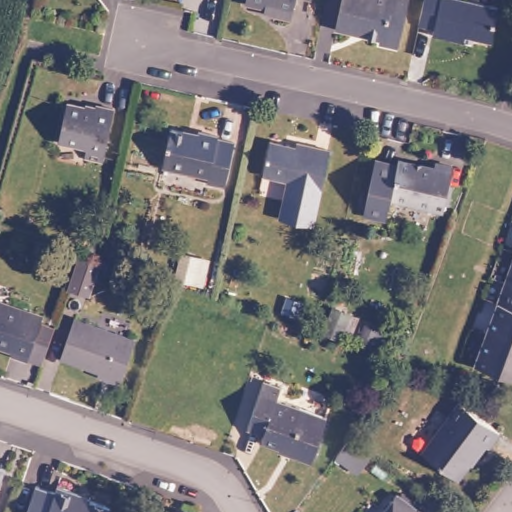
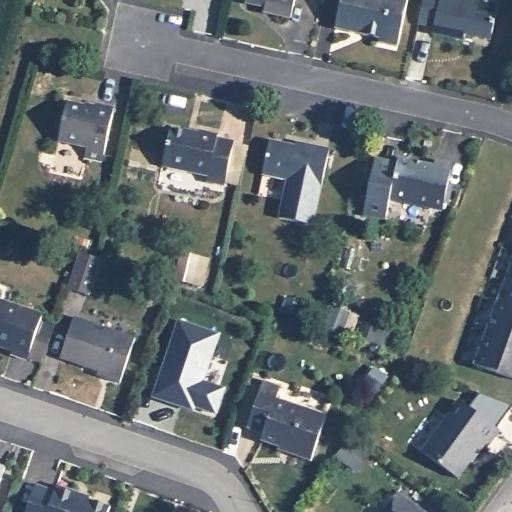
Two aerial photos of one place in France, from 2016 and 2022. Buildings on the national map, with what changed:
unchanged [(250,7),(237,4),(237,0),(283,0),(278,19),(264,17),(249,14),(250,7)]
unchanged [(396,47),(378,44),(379,40),(362,37),(364,31),(354,29),(353,34),(334,30),(341,0),(405,0),(396,47)]
unchanged [(467,39),(438,32),(440,22),(423,18),(426,0),(491,0),(502,2),(498,33),(477,31),(476,42),(467,39)]
unchanged [(94,109),(95,102),(114,107),(101,159),(87,157),(89,142),(59,138),(65,102),(94,109)]
unchanged [(194,131),(194,128),(210,130),(209,135),(227,139),(219,180),(200,177),(201,172),(161,162),(166,126),(194,131)]
unchanged [(296,145),(297,140),(328,147),(313,221),(280,214),(289,180),(261,174),(267,139),(296,145)]
unchanged [(429,168),(431,161),(446,164),(437,209),(389,199),(396,161),(429,168)]
unchanged [(473,363),(512,246),(512,377),(473,363)]
unchanged [(93,255),(101,258),(89,294),(65,286),(78,251),(93,255)]
unchanged [(31,358),(13,351),(16,346),(0,340),(0,294),(46,312),(31,358)]
unchanged [(358,299),(351,325),(333,319),(341,294),(358,299)]
unchanged [(133,339),(117,382),(101,378),(105,372),(60,356),(74,318),(133,339)]
new [(171,403),(153,397),(179,321),(219,335),(203,382),(225,389),(216,414),(195,407),(194,411),(171,403)]
unchanged [(289,385),(286,401),(333,416),(320,462),(300,456),(300,451),(273,442),(275,434),(258,426),(273,381),(289,385)]
unchanged [(500,429),(486,445),(483,442),(454,476),(423,453),(463,403),(500,429)]
unchanged [(0,499),(0,459),(13,464),(0,499)]
unchanged [(56,485),(78,492),(76,498),(106,508),(105,512),(26,512),(36,484),(52,492),(56,485)]
unchanged [(380,512),(396,492),(420,512),(380,512)]

